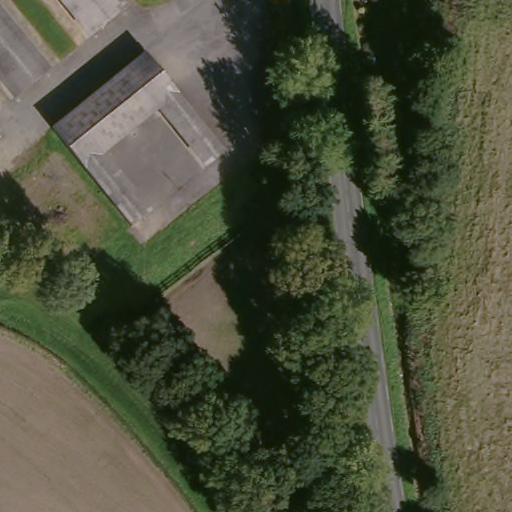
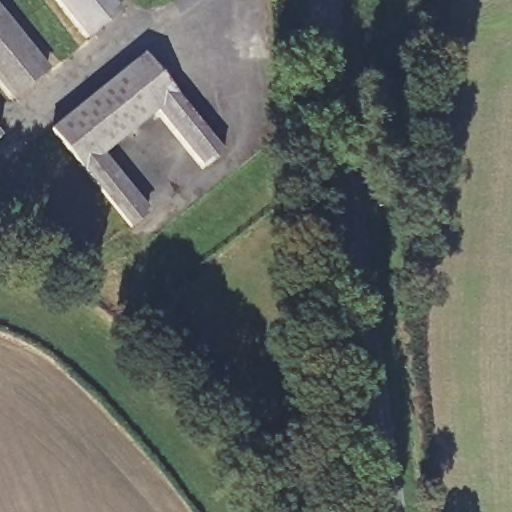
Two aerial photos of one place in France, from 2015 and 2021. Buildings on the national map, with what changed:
unchanged [(95,37),(65,0),(112,0),(123,14),(95,37)]
unchanged [(19,97),(0,73),(0,11),(49,73),(19,97)]
unchanged [(209,165),(164,107),(101,161),(144,217),(128,230),(54,135),(147,55),(224,153),(209,165)]

